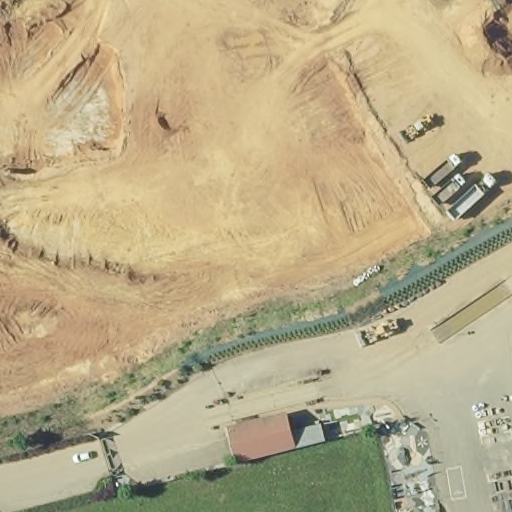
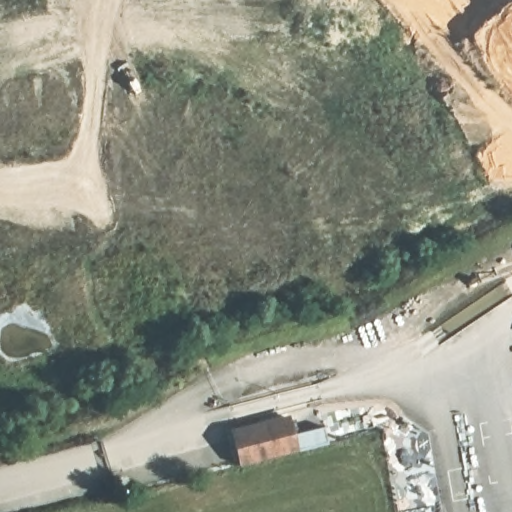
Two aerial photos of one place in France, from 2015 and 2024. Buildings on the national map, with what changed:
unchanged [(290,418),(294,435),(325,427),(327,443),(297,451),(240,465),(232,433),(290,418)]

